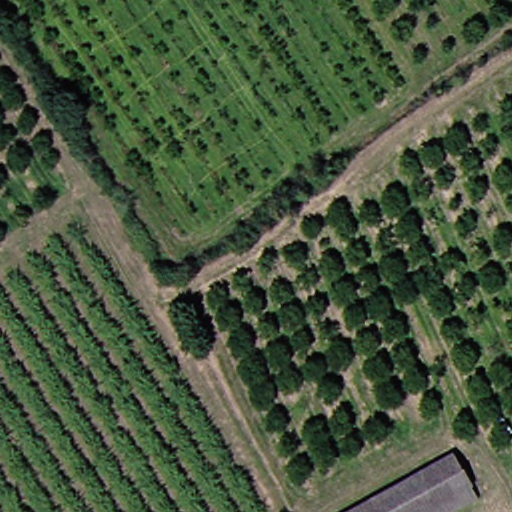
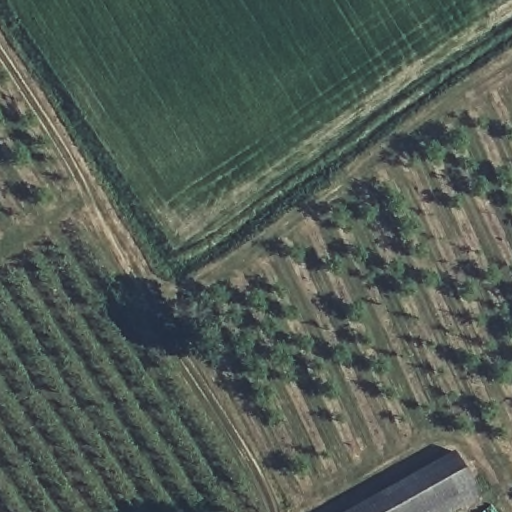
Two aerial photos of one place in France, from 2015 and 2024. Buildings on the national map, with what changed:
unchanged [(472,497),(447,512),(343,512),(447,454),(465,484),(472,497)]

